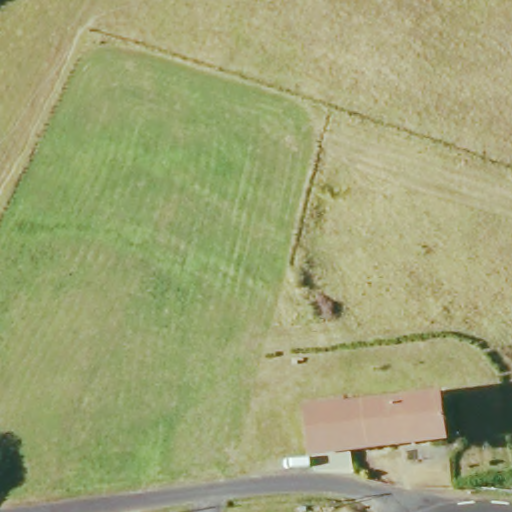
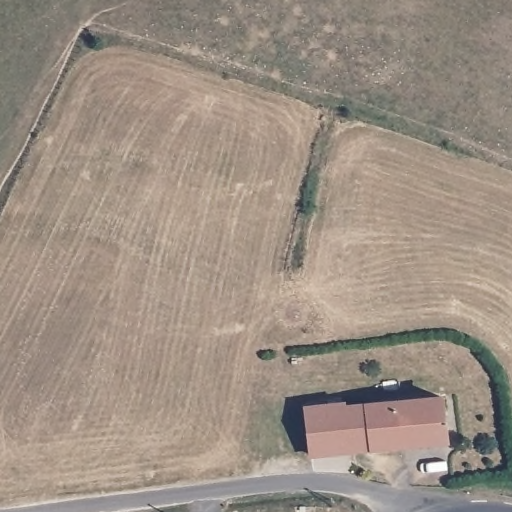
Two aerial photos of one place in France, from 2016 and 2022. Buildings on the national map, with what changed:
unchanged [(311,456),(305,408),(343,404),(343,406),(440,395),(445,441),(311,456)]

